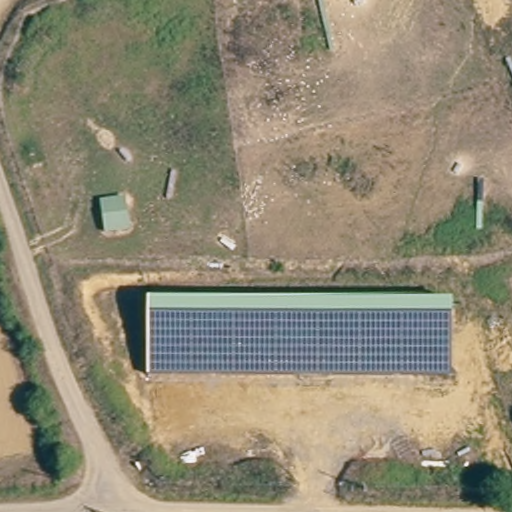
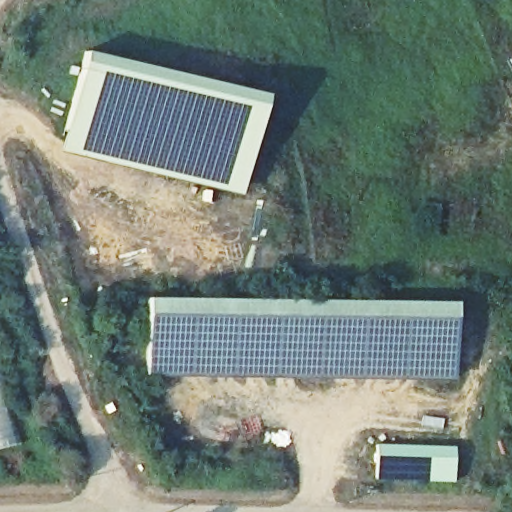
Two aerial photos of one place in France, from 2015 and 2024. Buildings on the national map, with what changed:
new [(60,152),(85,52),(265,95),(241,196),(60,152)]
unchanged [(454,302),(454,317),(452,379),(149,374),(150,314),(150,298),(454,302)]
new [(0,448),(0,382),(19,444),(0,448)]
new [(377,446),(454,448),(453,483),(376,480),(377,446)]

